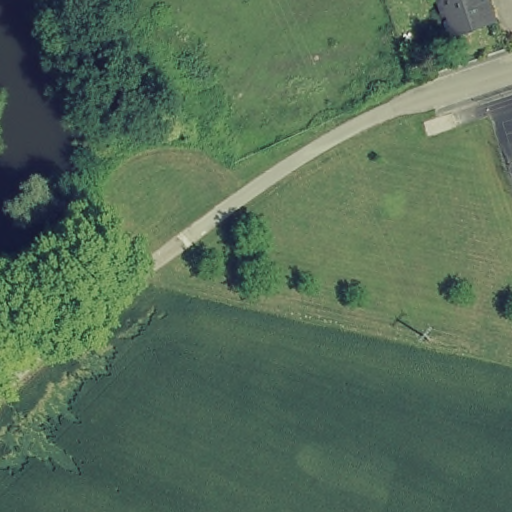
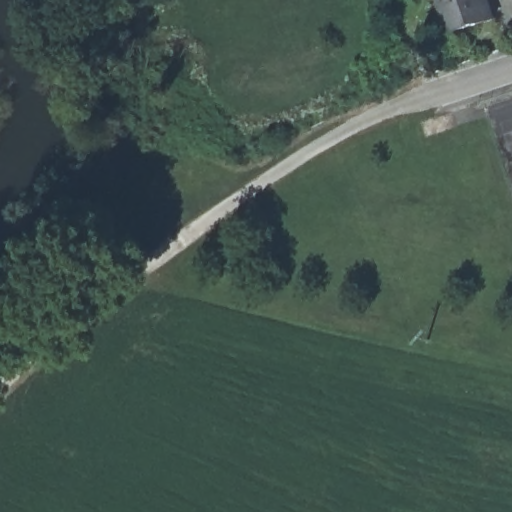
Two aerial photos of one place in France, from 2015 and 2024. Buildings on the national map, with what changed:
unchanged [(455,32),(450,13),(443,9),(440,0),(441,0),(491,0),(497,20),(455,32)]

